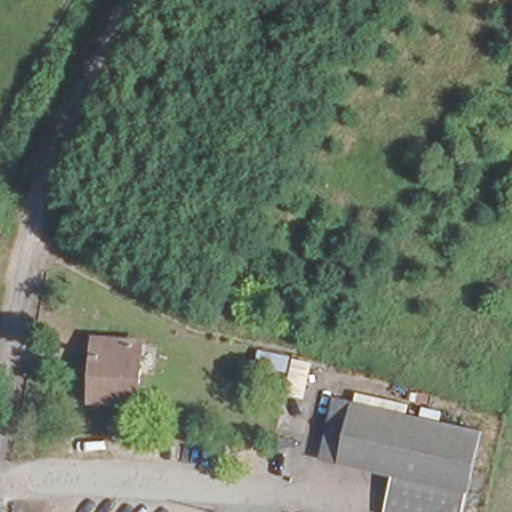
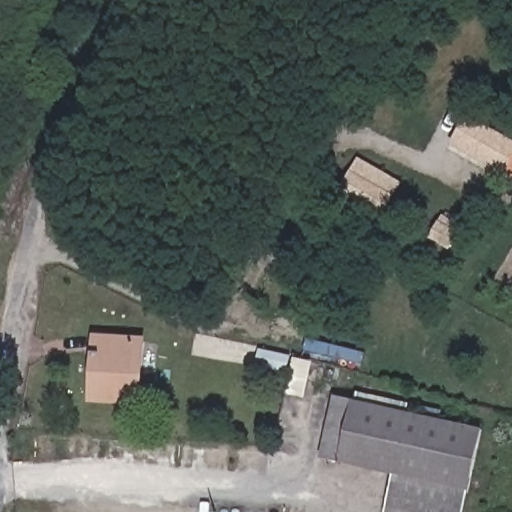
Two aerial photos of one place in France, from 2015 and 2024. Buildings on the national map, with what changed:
new [(512,142),(512,182),(511,184),(447,149),(466,117),(512,142)]
new [(402,183),(383,216),(338,190),(357,157),(402,183)]
unchanged [(91,398),(96,338),(144,342),(139,402),(91,398)]
unchanged [(313,452),(324,393),(481,427),(463,512),(380,512),(390,468),(313,452)]

